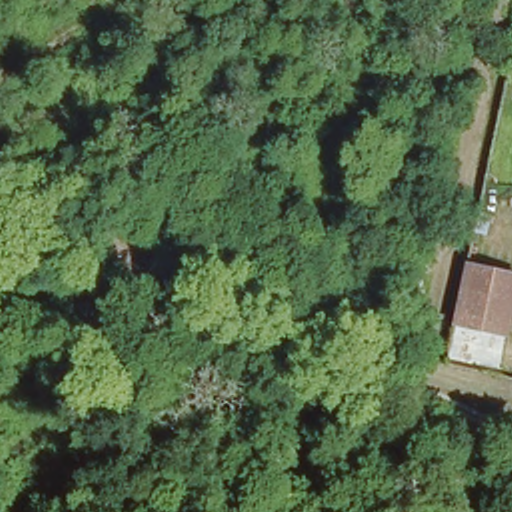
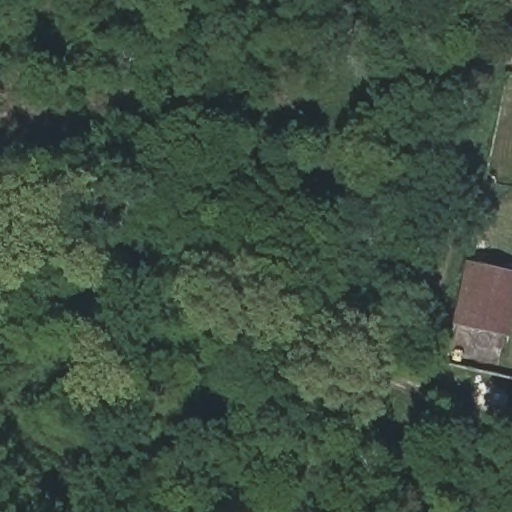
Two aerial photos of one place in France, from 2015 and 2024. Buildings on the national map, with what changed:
unchanged [(463,240),(512,252),(512,269),(494,353),(448,343),(438,341),(463,240)]

